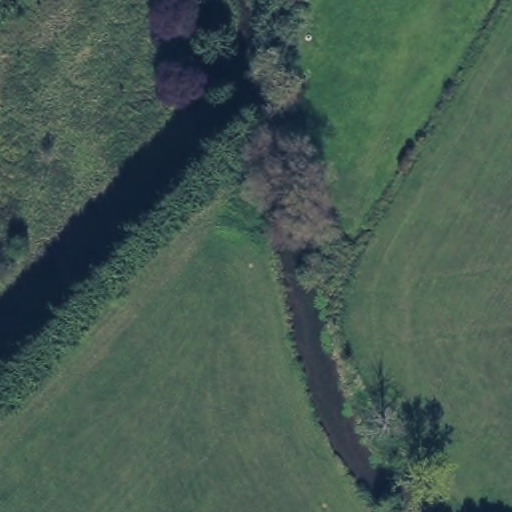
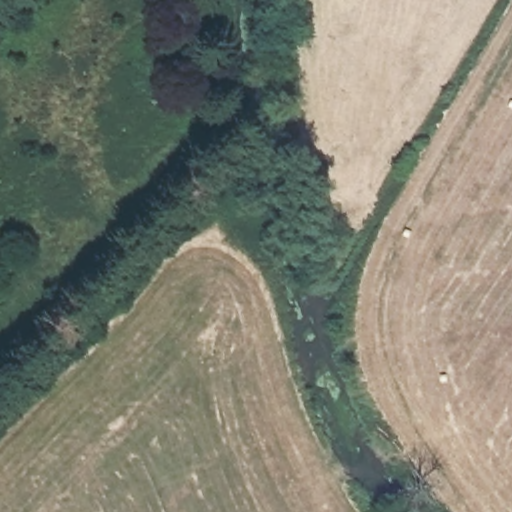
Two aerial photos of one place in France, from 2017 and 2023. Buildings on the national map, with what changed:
unchanged [(322,209),(337,211),(335,227),(320,225),(322,209)]

